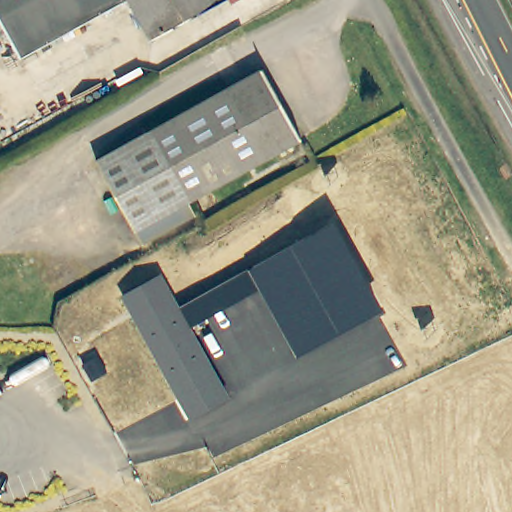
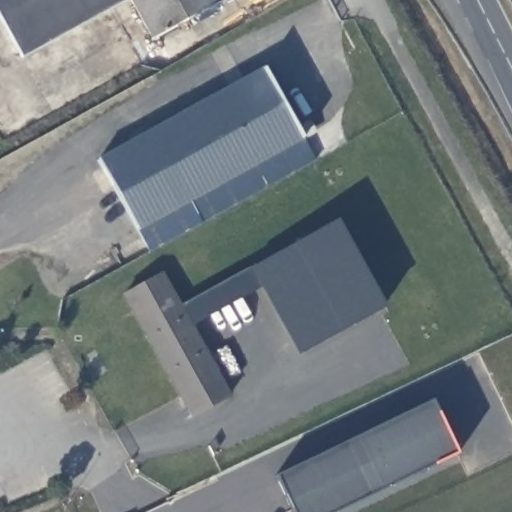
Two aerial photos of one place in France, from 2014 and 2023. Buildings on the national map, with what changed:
unchanged [(27,59),(0,11),(0,0),(127,0),(27,59)]
unchanged [(159,37),(138,0),(222,0),(159,37)]
unchanged [(304,138),(140,234),(99,164),(263,69),(304,138)]
unchanged [(180,306),(250,270),(334,223),(383,308),(297,355),(260,290),(191,326),(180,306)]
unchanged [(126,299),(165,278),(231,400),(194,421),(126,299)]
new [(336,512),(291,512),(274,478),(430,403),(455,454),(336,512)]
demolished [(149,497),(135,502),(126,479),(140,475),(149,497)]

